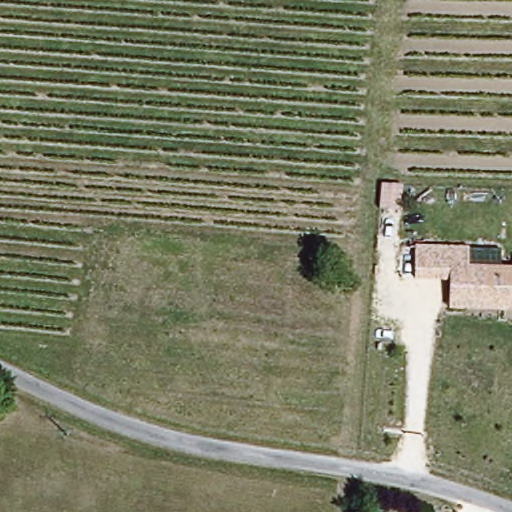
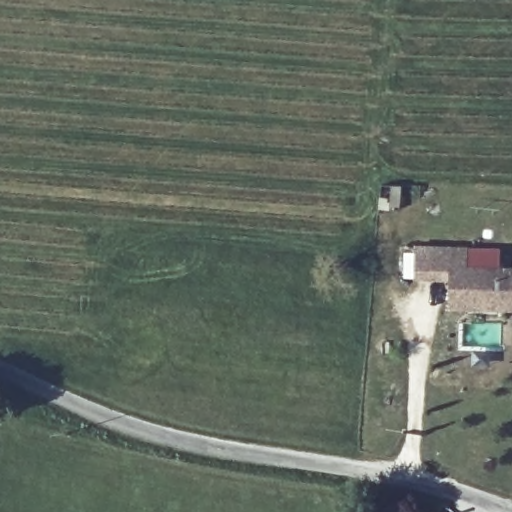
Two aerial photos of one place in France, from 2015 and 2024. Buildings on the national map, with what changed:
unchanged [(469,245),(469,265),(512,265),(512,311),(447,309),(447,281),(413,281),(413,244),(469,245)]

